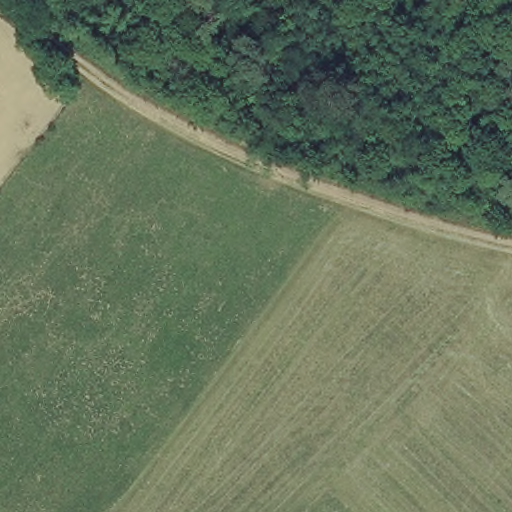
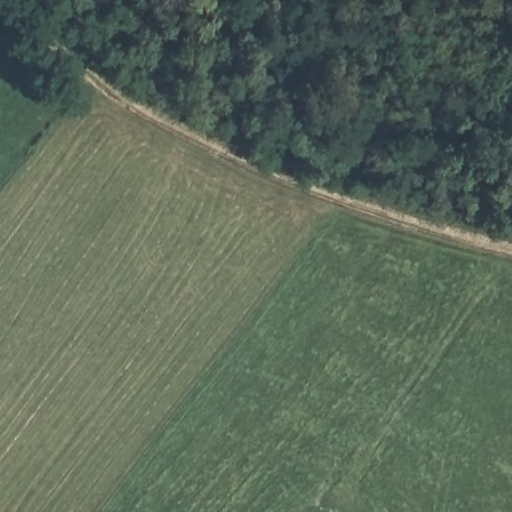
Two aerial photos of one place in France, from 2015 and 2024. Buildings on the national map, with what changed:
[]

